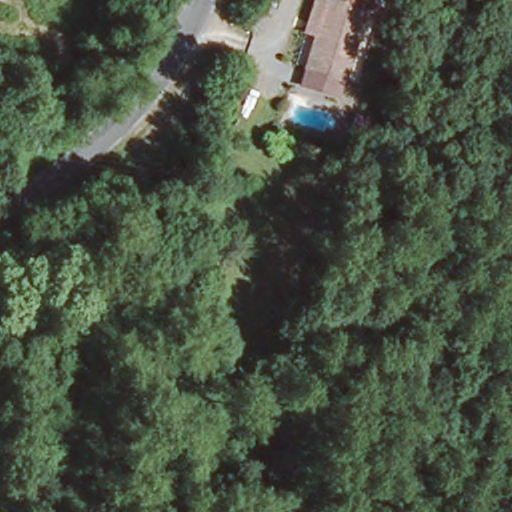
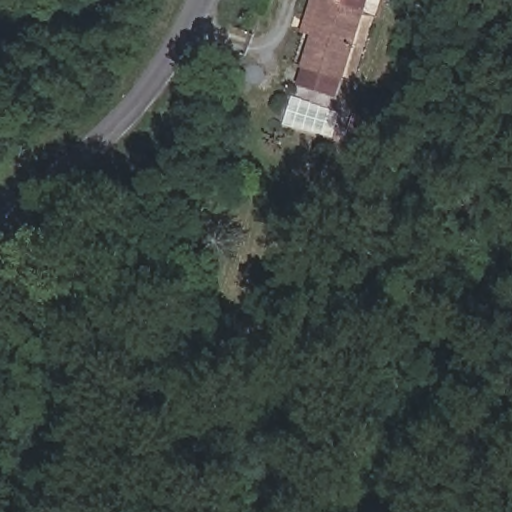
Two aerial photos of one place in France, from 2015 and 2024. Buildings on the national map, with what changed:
unchanged [(305,56),(315,24),(306,21),(312,0),(366,0),(343,70),(337,87),(299,74),(305,56)]

